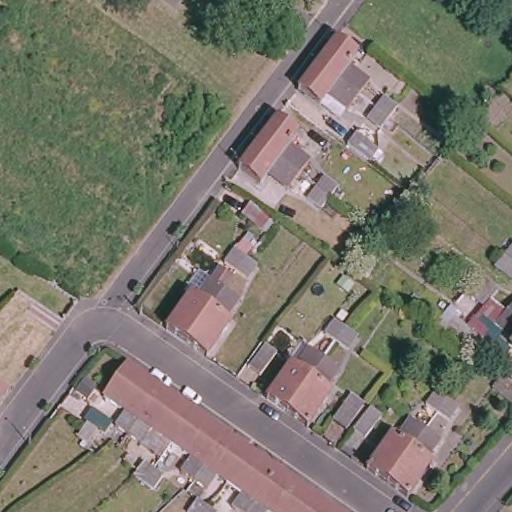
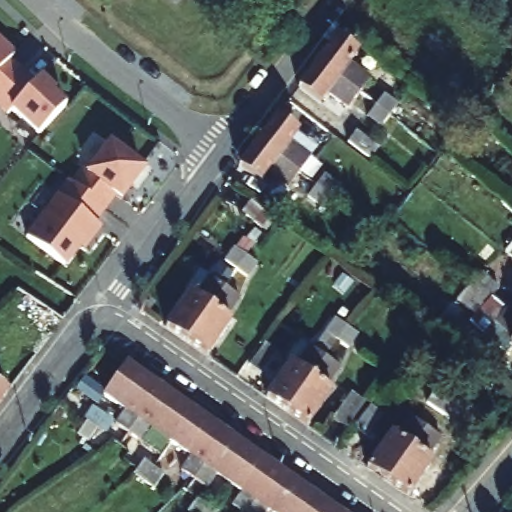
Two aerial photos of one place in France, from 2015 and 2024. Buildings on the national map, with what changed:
new [(11,109),(6,114),(0,108),(0,37),(14,51),(9,58),(38,81),(41,77),(55,89),(53,93),(65,104),(37,136),(11,109)]
unchanged [(356,56),(349,66),(369,83),(358,99),(317,66),(334,44),(336,41),(356,56)]
unchanged [(347,112),(327,98),(319,109),(298,92),(317,66),(358,99),(347,112)]
unchanged [(366,117),(374,106),(383,95),(397,106),(388,118),(380,128),(366,117)]
unchanged [(298,133),(290,143),(309,158),(299,171),(257,140),(276,115),(298,133)]
unchanged [(287,187),(268,172),(259,184),(237,166),(253,145),(257,140),(299,171),(287,187)]
new [(26,237),(69,179),(75,184),(85,170),(89,173),(113,143),(140,169),(131,182),(134,185),(120,199),(114,194),(93,221),(99,226),(88,240),(84,237),(64,264),(26,237)]
unchanged [(307,195),(316,184),(324,174),(337,184),(331,194),(321,206),(307,195)]
unchanged [(506,254),(512,247),(512,278),(497,265),(506,254)]
unchanged [(255,262),(246,276),(236,270),(225,263),(234,248),(247,257),(255,262)]
unchanged [(480,273),(499,288),(492,297),(484,305),(465,290),(471,283),(480,273)]
unchanged [(184,304),(190,308),(204,288),(218,297),(218,298),(181,351),(176,347),(160,337),(184,304)]
unchanged [(233,308),(218,329),(224,333),(201,365),(181,351),(218,298),(218,297),(233,308)]
unchanged [(349,348),(341,341),(328,332),(338,318),(351,328),(359,334),(349,348)]
unchanged [(512,324),(512,340),(504,334),(512,324)]
unchanged [(243,369),(231,361),(254,330),(266,339),(243,369)]
unchanged [(284,374),(289,378),(304,357),(322,369),(283,422),(260,406),(284,374)]
unchanged [(132,438),(118,428),(128,414),(108,401),(132,366),(159,385),(166,390),(199,413),(194,419),(176,447),(175,448),(154,434),(145,447),(132,438)]
unchanged [(334,378),(319,399),(326,404),(303,436),(283,422),(322,369),(334,378)]
unchanged [(18,386),(0,410),(0,372),(18,386)]
unchanged [(503,376),(512,382),(512,401),(493,388),(503,376)]
unchanged [(459,404),(448,417),(439,411),(425,402),(435,388),(451,398),(459,404)]
unchanged [(351,399),(362,407),(344,429),(334,421),(351,399)]
unchanged [(373,407),(384,415),(368,438),(356,429),(373,407)]
unchanged [(198,484),(184,474),(193,461),(175,448),(176,447),(194,419),(199,413),(233,436),(246,444),(266,458),(253,476),(239,466),(226,483),(219,479),(209,492),(198,484)]
unchanged [(386,441),(391,444),(406,424),(419,433),(381,487),(361,473),(386,441)]
unchanged [(436,444),(421,465),(426,469),(403,502),(381,487),(419,433),(436,444)]
demolished [(89,459),(82,449),(96,439),(103,449),(89,459)]
unchanged [(236,511),(246,497),(233,489),(233,488),(226,483),(239,466),(253,476),(266,458),(283,471),(317,494),(305,512),(237,512),(236,511)]
unchanged [(153,487),(143,481),(134,474),(133,473),(141,459),(147,463),(153,467),(163,474),(153,487)]
unchanged [(317,494),(343,512),(305,512),(317,494)]
unchanged [(201,502),(208,507),(211,509),(216,512),(193,512),(201,502)]

